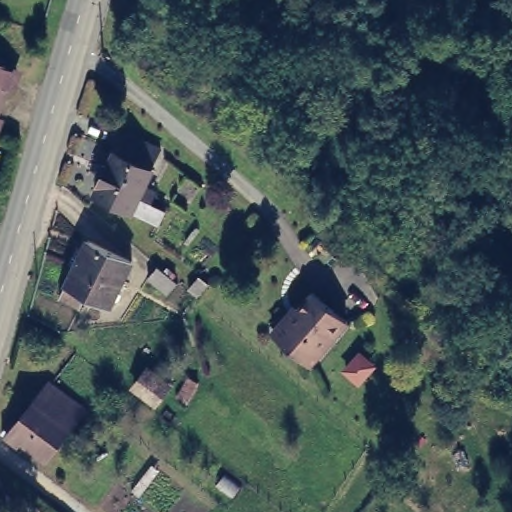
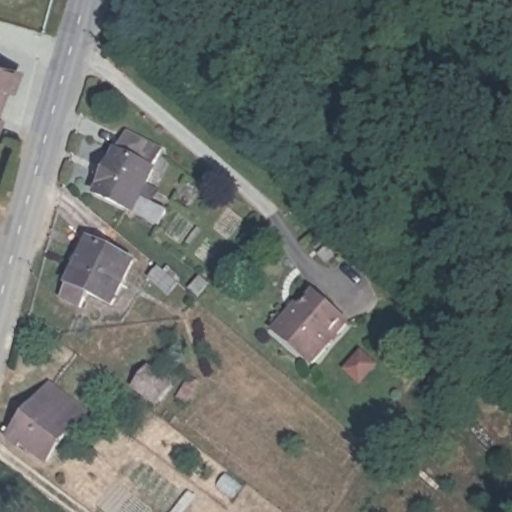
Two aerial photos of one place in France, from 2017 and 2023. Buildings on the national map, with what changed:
unchanged [(17,89),(9,87),(0,110),(0,64),(23,73),(17,89)]
unchanged [(162,154),(143,188),(149,191),(144,200),(138,197),(133,209),(97,190),(127,135),(162,154)]
unchanged [(107,307),(86,295),(77,310),(59,300),(85,244),(130,268),(107,307)]
unchanged [(345,328),(308,366),(275,332),(289,316),(295,308),(300,311),(315,298),(345,328)]
unchanged [(174,386),(155,410),(129,389),(150,366),(174,386)]
unchanged [(87,411),(52,461),(27,442),(22,448),(12,440),(51,383),(87,411)]

